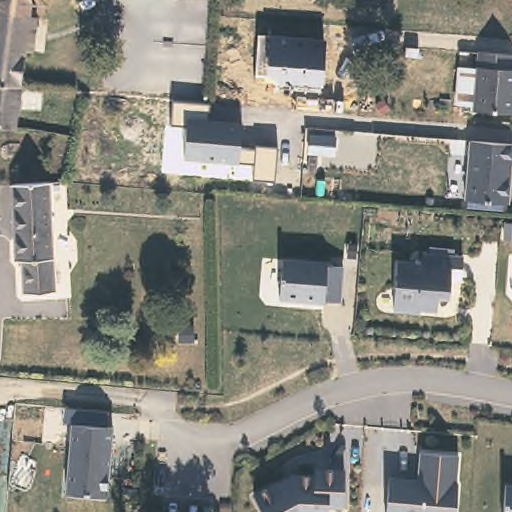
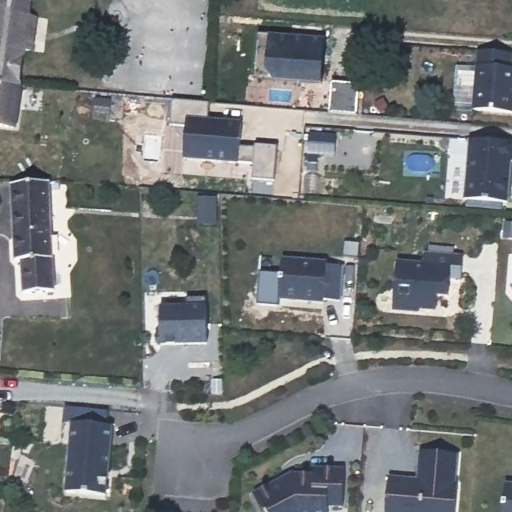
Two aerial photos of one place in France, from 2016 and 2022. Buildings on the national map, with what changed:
unchanged [(0,87),(0,0),(29,0),(24,34),(36,35),(34,55),(22,54),(17,89),(0,87)]
unchanged [(268,78),(256,80),(259,37),(276,39),(324,42),(322,87),(274,82),(268,78)]
unchanged [(509,73),(512,73),(512,112),(511,117),(470,114),(476,55),(511,58),(509,73)]
unchanged [(12,129),(0,127),(0,87),(17,89),(12,129)]
unchanged [(238,164),(186,160),(188,126),(172,125),(173,102),(211,104),(209,122),(242,124),(241,149),(255,151),(255,145),(279,147),(278,181),(254,180),(254,164),(238,164)]
unchanged [(512,162),(507,162),(504,204),(463,200),(468,140),(512,144),(512,162)]
unchanged [(53,292),(22,295),(20,262),(16,262),(9,187),(45,186),(53,292)]
unchanged [(422,265),(423,254),(461,257),(460,278),(449,277),(447,297),(436,296),(436,306),(419,305),(419,311),(392,309),(395,263),(422,265)]
unchanged [(324,301),(324,307),(280,302),(284,258),(327,262),(327,266),(342,267),(340,302),(324,301)]
new [(160,307),(187,306),(185,298),(206,297),(207,305),(209,343),(161,346),(160,307)]
unchanged [(62,423),(65,408),(106,412),(106,427),(71,423),(62,423)]
unchanged [(71,423),(113,427),(108,496),(65,495),(71,423)]
unchanged [(418,456),(456,458),(454,487),(456,487),(455,512),(386,512),(387,482),(416,483),(418,456)]
unchanged [(313,476),(313,469),(343,470),(342,507),(327,507),(327,512),(261,512),(252,496),(290,475),(313,476)]
unchanged [(512,512),(504,512),(506,485),(512,485),(512,512)]

